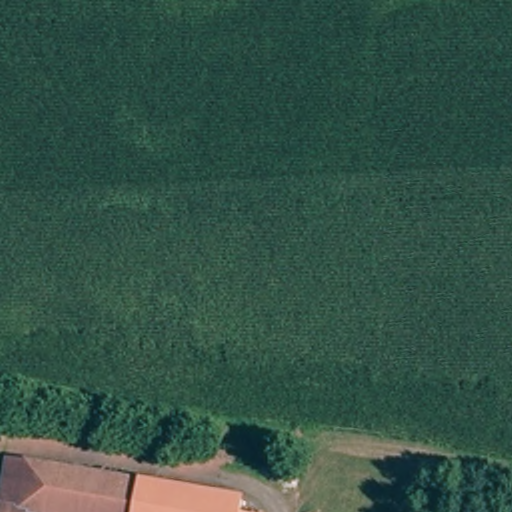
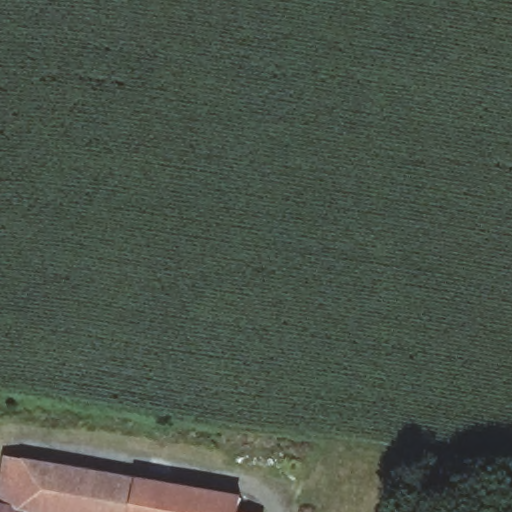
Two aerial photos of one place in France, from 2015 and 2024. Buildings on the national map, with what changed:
unchanged [(146,481),(174,486),(245,497),(242,512),(1,512),(5,487),(10,459),(146,481)]

